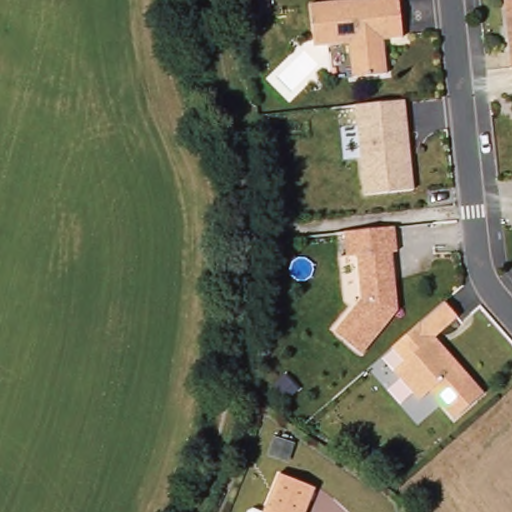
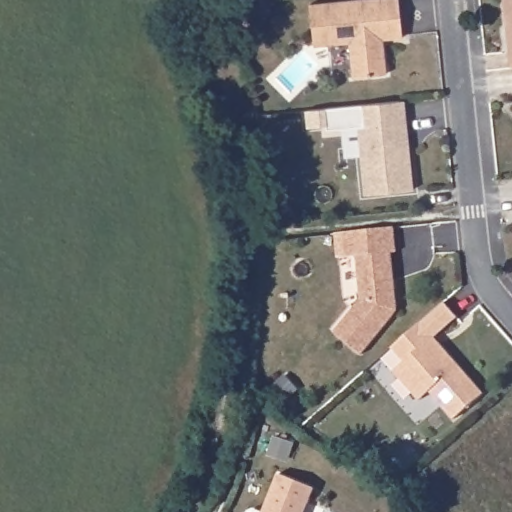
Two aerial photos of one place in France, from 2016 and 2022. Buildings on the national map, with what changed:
unchanged [(352,78),(349,43),(329,45),(314,46),(310,4),(354,0),(399,0),(402,38),(382,39),(383,49),(386,74),(352,78)]
unchanged [(512,8),(512,78),(511,79),(510,61),(507,36),(504,9),(512,8)]
unchanged [(399,100),(401,125),(404,151),(408,190),(360,195),(355,158),(352,125),(350,105),(378,103),(399,100)]
unchanged [(394,227),(396,252),(391,253),(395,280),(397,310),(361,354),(334,333),(361,299),(356,255),(346,257),(344,232),(378,229),(394,227)]
unchanged [(457,317),(434,337),(430,340),(435,346),(438,343),(483,394),(454,419),(441,404),(430,391),(419,401),(393,371),(404,362),(391,348),(444,302),(457,317)]
unchanged [(269,457),(270,452),(275,438),(294,444),(290,459),(288,463),(269,457)]
unchanged [(279,474),(315,489),(305,512),(263,512),(279,474)]
unchanged [(254,510),(258,512),(249,512),(254,510)]

